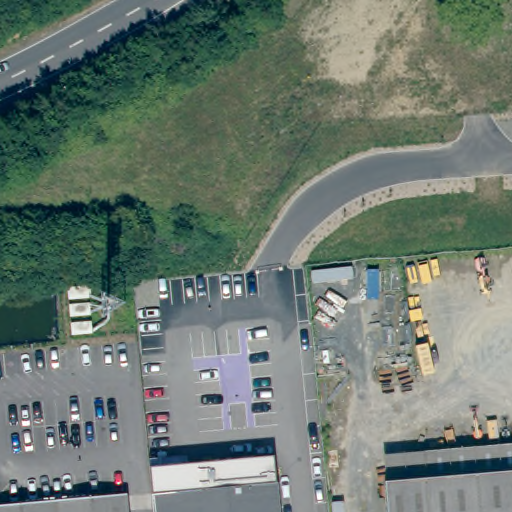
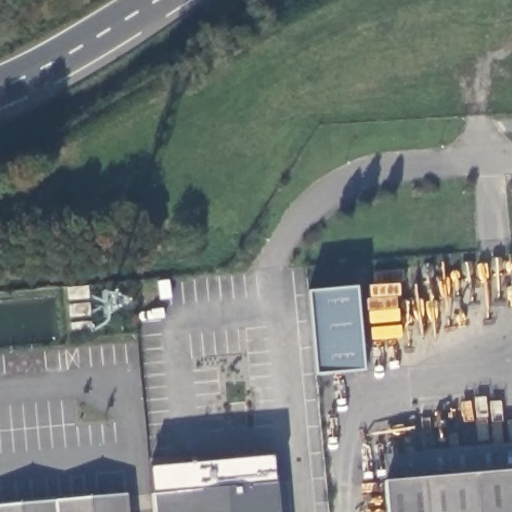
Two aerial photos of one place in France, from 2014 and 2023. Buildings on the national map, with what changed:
new [(364,371),(316,375),(309,292),(354,288),(364,371)]
unchanged [(68,292),(88,290),(89,302),(68,303),(68,292)]
unchanged [(89,307),(90,319),(70,321),(69,308),(89,307)]
unchanged [(91,326),(91,337),(71,339),(71,327),(91,326)]
unchanged [(386,482),(384,457),(512,446),(512,472),(386,482)]
unchanged [(385,483),(386,482),(512,472),(512,512),(387,512),(385,483)]
unchanged [(276,480),(278,512),(153,512),(151,491),(276,480)]
unchanged [(126,512),(0,512),(0,509),(125,497),(126,512)]

